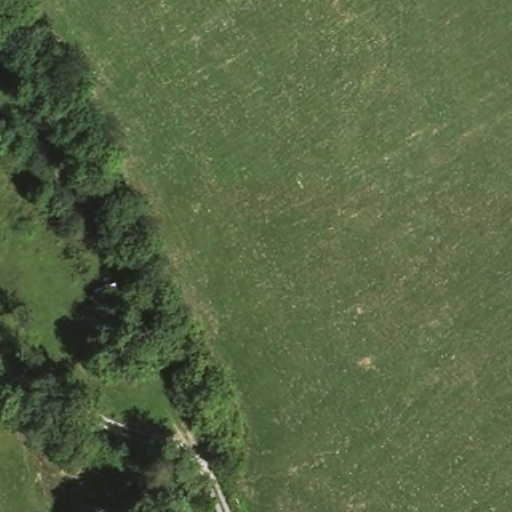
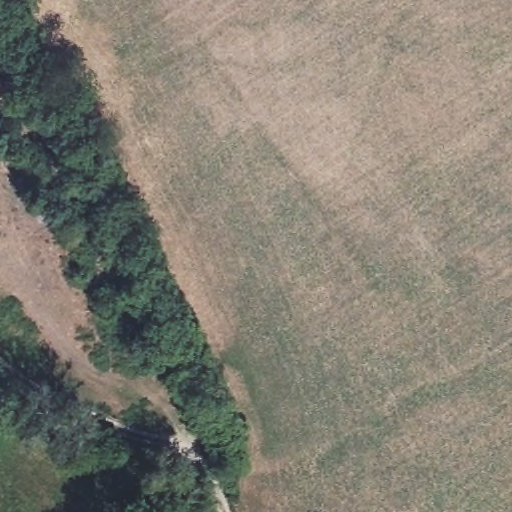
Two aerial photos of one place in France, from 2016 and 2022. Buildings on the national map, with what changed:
[]

